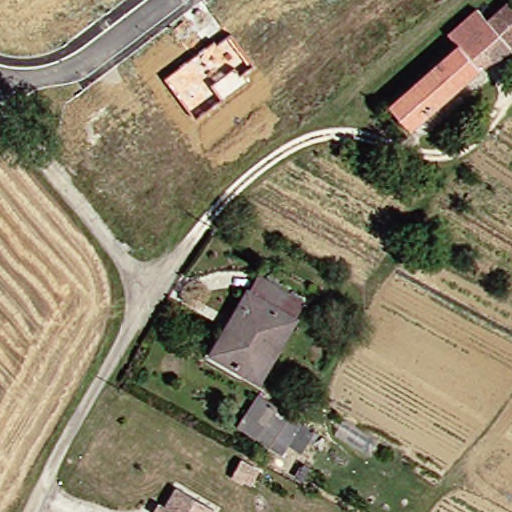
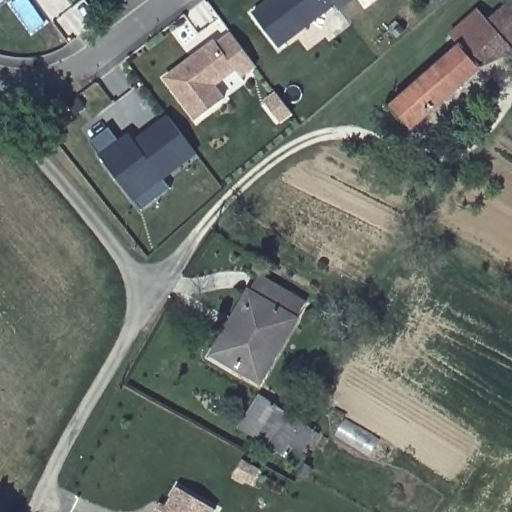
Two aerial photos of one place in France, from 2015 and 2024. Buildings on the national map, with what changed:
unchanged [(358,0),(339,14),(335,8),(280,49),(252,12),(269,0),(358,0)]
unchanged [(484,19),(506,1),(512,9),(512,48),(506,52),(484,19)]
unchanged [(475,14),(484,19),(506,52),(504,56),(473,67),(457,48),(449,36),(475,14)]
unchanged [(215,41),(217,43),(231,34),(257,69),(243,79),(238,73),(218,87),(227,100),(196,122),(163,79),(215,41)]
unchanged [(405,126),(387,104),(457,48),(473,67),(405,126)]
new [(164,181),(171,190),(142,211),(91,143),(110,130),(118,141),(129,134),(132,138),(166,114),(198,154),(164,181)]
unchanged [(230,314),(237,319),(263,279),(300,303),(291,316),(300,323),(261,386),(222,359),(206,348),(230,314)]
unchanged [(255,398),(311,430),(297,454),(284,446),(279,455),(237,428),(255,398)]
unchanged [(241,462),(258,472),(251,485),(233,475),(241,462)]
unchanged [(154,512),(159,503),(164,506),(176,487),(213,509),(211,512),(154,512)]

